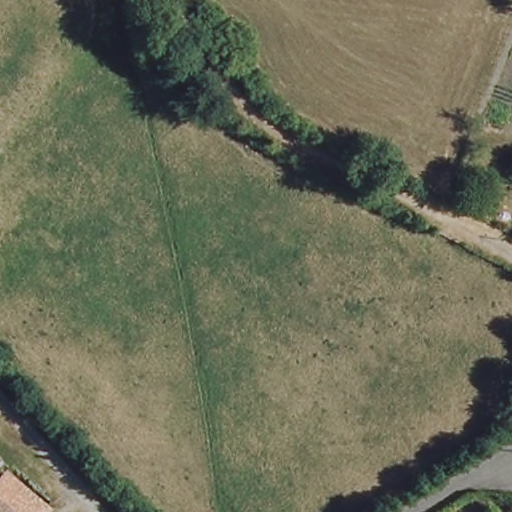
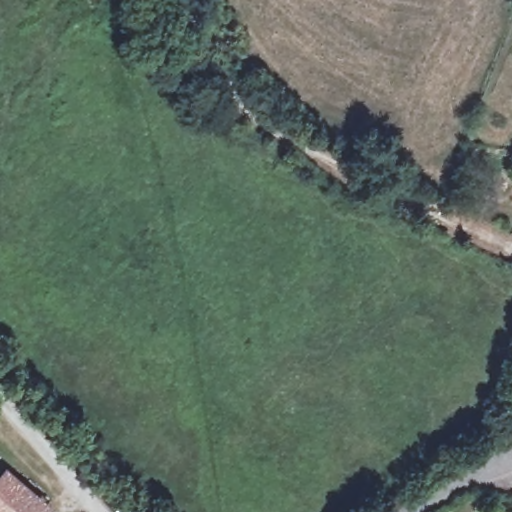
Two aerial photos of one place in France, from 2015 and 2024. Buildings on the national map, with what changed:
unchanged [(40,512),(0,512),(0,478),(4,473),(5,472),(45,506),(40,512)]

